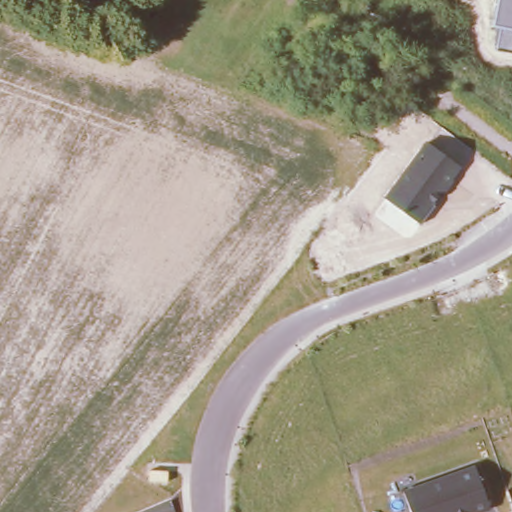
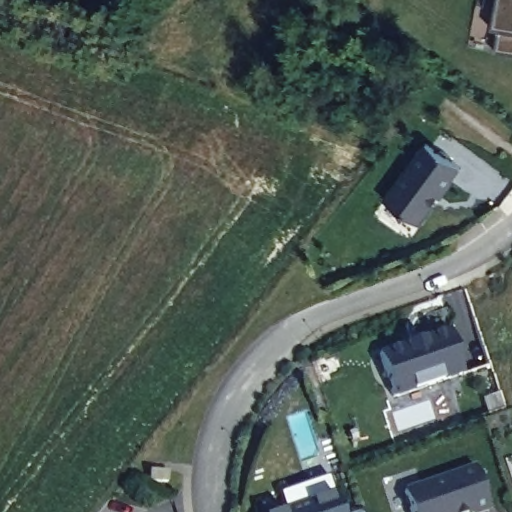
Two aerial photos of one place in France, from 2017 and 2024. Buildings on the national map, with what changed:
unchanged [(500,27),(493,26),(497,0),(512,0),(512,53),(496,50),(500,27)]
unchanged [(461,166),(452,179),(454,181),(446,191),(440,193),(432,203),(435,205),(420,224),(384,197),(425,142),(461,166)]
new [(448,331),(464,373),(393,398),(378,355),(448,331)]
unchanged [(489,510),(483,512),(412,512),(405,490),(475,467),(489,510)]
new [(282,512),(276,494),(327,477),(339,512),(282,512)]

